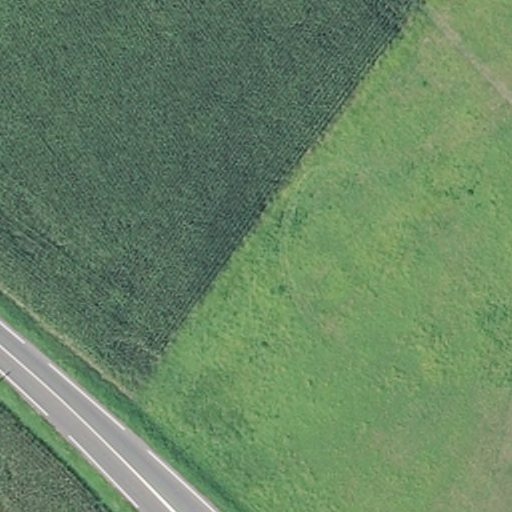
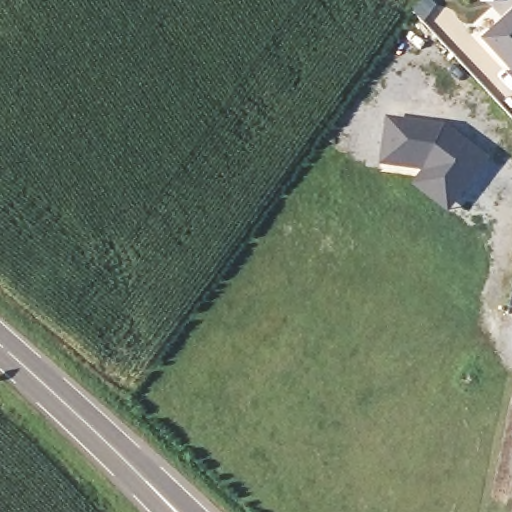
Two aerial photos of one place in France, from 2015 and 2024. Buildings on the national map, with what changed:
new [(512,76),(477,39),(512,8),(512,76)]
new [(414,187),(425,174),(423,171),(382,165),(388,122),(444,130),(486,163),(474,179),(467,186),(457,199),(447,213),(414,187)]

